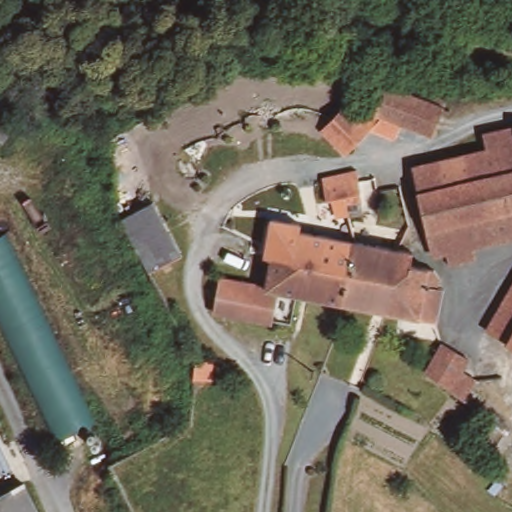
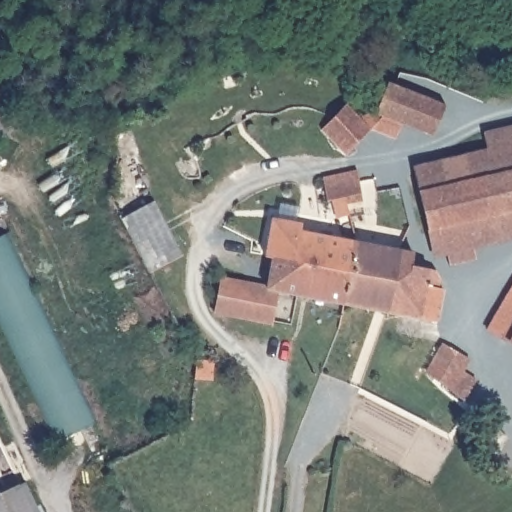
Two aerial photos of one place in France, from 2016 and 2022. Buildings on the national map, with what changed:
unchanged [(321,130),(347,102),(361,117),(368,104),(379,110),(391,84),(429,98),(446,103),(431,136),(421,131),(411,146),(394,139),(373,127),(347,152),(321,130)]
unchanged [(0,138),(0,102),(20,117),(4,141),(0,138)]
unchanged [(434,245),(419,164),(490,150),(489,135),(512,130),(512,241),(473,248),(475,261),(473,262),(446,266),(444,254),(436,256),(434,245)]
unchanged [(334,175),(352,173),(356,196),(339,198),(320,201),(316,177),(334,175)]
unchanged [(123,216),(159,197),(184,251),(185,252),(149,269),(123,216)]
unchanged [(279,291),(272,323),(212,313),(218,276),(264,285),(270,257),(264,254),(272,216),(303,222),(301,230),(415,251),(412,263),(437,269),(442,278),(439,287),(444,287),(438,322),(279,291)]
unchanged [(3,235),(96,425),(97,436),(89,437),(85,428),(66,437),(68,447),(56,451),(0,325),(0,236),(3,235)]
unchanged [(512,284),(512,344),(485,328),(512,284)]
unchanged [(442,341),(471,361),(469,372),(480,380),(463,401),(425,372),(442,341)]
unchanged [(18,475),(36,512),(0,512),(0,484),(18,475)]

